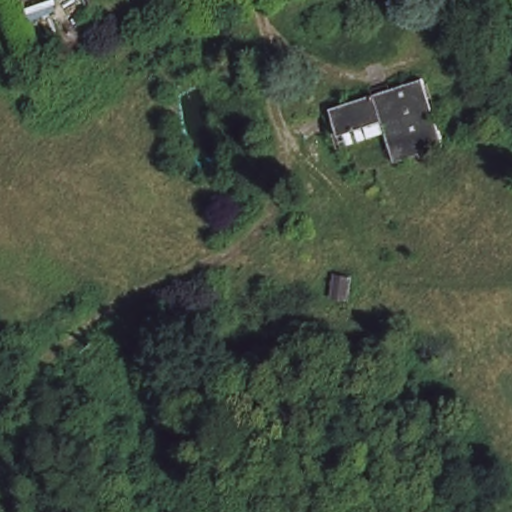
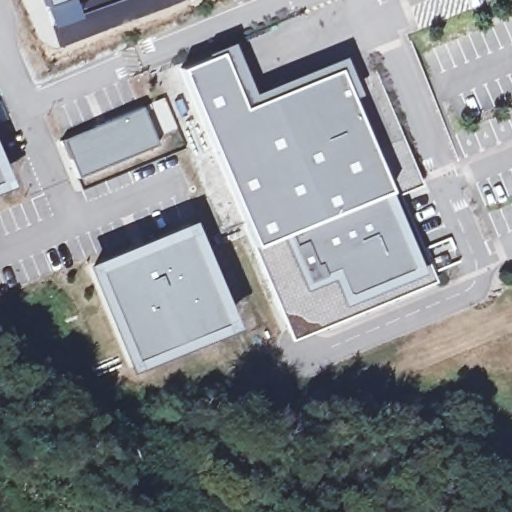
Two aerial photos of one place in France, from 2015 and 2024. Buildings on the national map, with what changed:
new [(370,150),(402,139),(422,187),(397,197),(435,282),(292,341),(254,247),(182,70),(221,54),(244,107),(338,71),(370,150)]
demolished [(447,149),(398,162),(388,122),(340,137),(333,109),(379,96),(382,102),(395,98),(395,91),(428,82),(447,149)]
new [(145,106),(161,145),(80,177),(65,139),(145,106)]
new [(3,180),(0,181),(0,173),(3,180)]
new [(134,358),(98,271),(187,235),(222,322),(134,358)]

